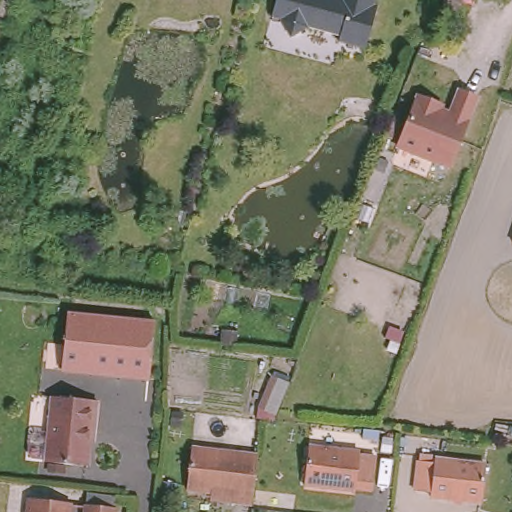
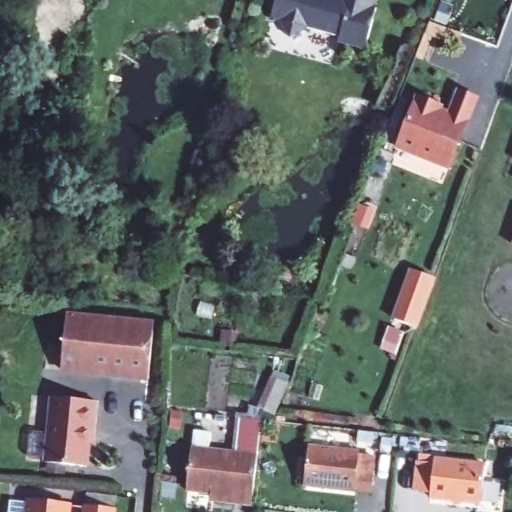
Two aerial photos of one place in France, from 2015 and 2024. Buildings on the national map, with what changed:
unchanged [(381,3),(371,44),(343,38),(345,31),(313,23),(296,34),(288,16),(279,14),(282,0),(379,0),(378,2),(381,3)]
unchanged [(425,102),(428,103),(434,101),(444,104),(447,109),(449,110),(448,114),(458,118),(468,91),(485,98),(460,168),(409,149),(425,102)]
unchanged [(511,245),(512,242),(512,246),(511,245)]
new [(409,273),(436,282),(419,332),(392,321),(409,273)]
unchanged [(161,368),(75,359),(80,302),(166,310),(161,368)]
unchanged [(56,396),(56,394),(101,398),(101,401),(99,427),(95,427),(92,463),(51,459),(56,396)]
unchanged [(308,478),(313,441),(363,447),(363,449),(381,451),(378,484),(359,482),(359,484),(308,478)]
unchanged [(214,491),(191,489),(196,447),(261,454),(256,502),(227,499),(213,498),(214,491)]
unchanged [(435,453),(484,459),(479,497),(431,491),(432,487),(414,484),(418,454),(435,457),(435,453)]
unchanged [(73,512),(30,512),(32,495),(74,500),(73,512)]
unchanged [(89,502),(119,505),(119,512),(88,512),(89,502)]

